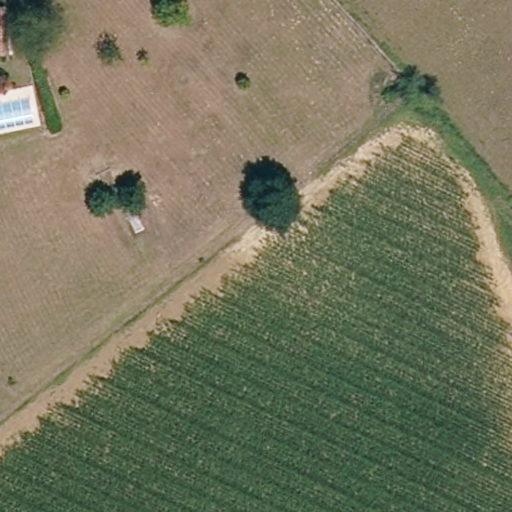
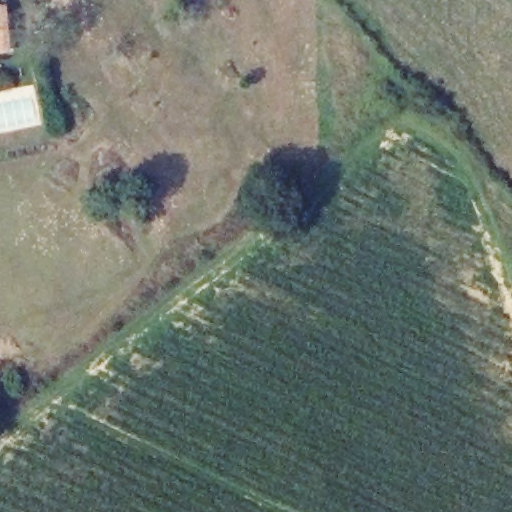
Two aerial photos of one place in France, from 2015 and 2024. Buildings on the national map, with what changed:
unchanged [(12,46),(0,46),(0,4),(9,4),(12,46)]

